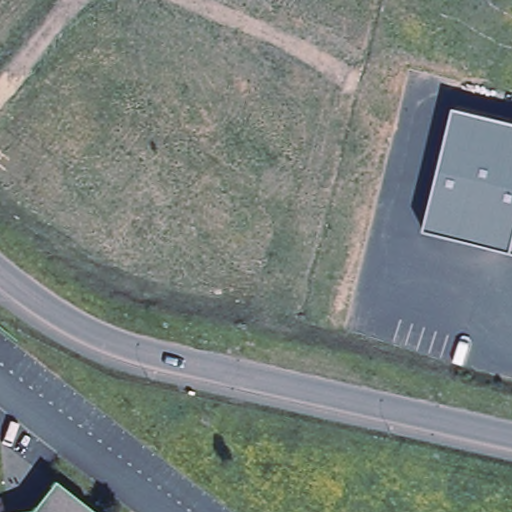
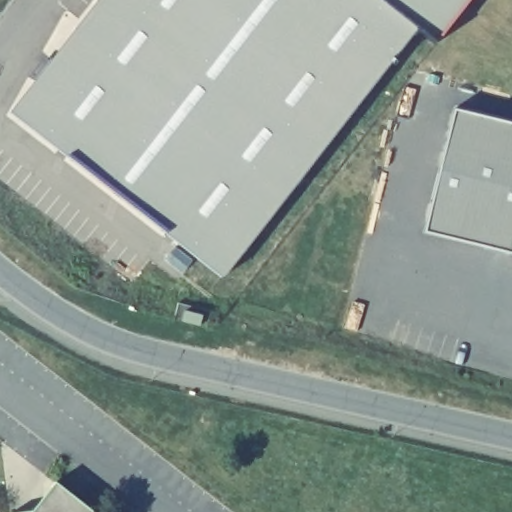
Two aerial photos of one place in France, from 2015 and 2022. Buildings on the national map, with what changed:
new [(415,29),(222,277),(10,112),(97,0),(470,0),(436,45),(415,29)]
unchanged [(425,232),(455,109),(512,124),(512,250),(512,252),(425,232)]
unchanged [(53,484),(88,512),(31,512),(53,484)]

